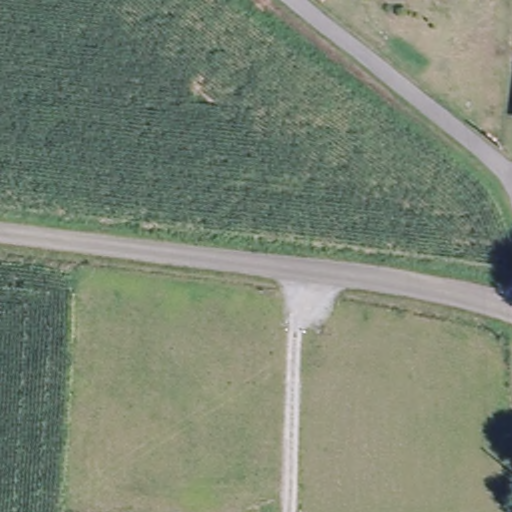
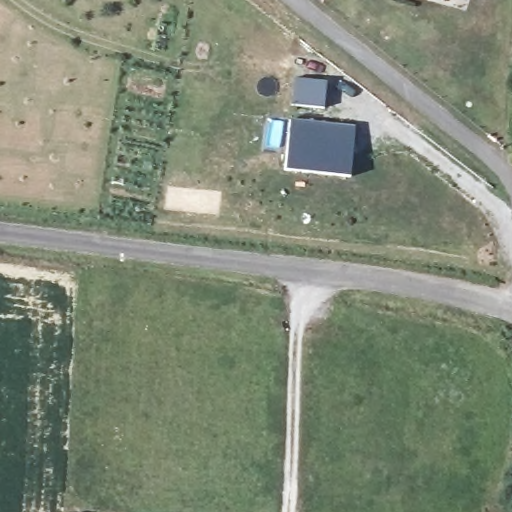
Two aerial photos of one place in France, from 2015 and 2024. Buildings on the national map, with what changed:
demolished [(415,0),(425,0),(424,2),(415,0)]
new [(293,75),(327,79),(324,108),(290,103),(293,75)]
new [(289,118),(356,125),(350,176),(283,169),(289,118)]

